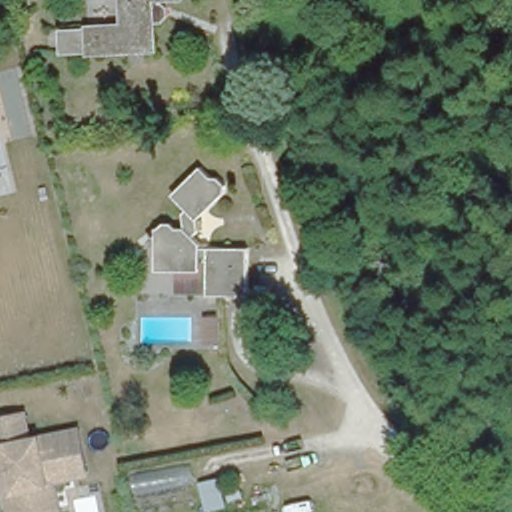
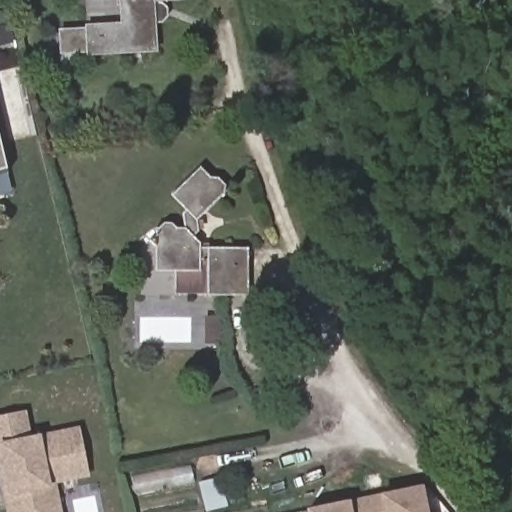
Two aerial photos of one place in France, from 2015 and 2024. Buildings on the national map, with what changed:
unchanged [(58,32),(84,32),(117,29),(116,0),(178,0),(179,2),(154,4),(155,7),(162,12),(162,21),(157,26),(150,27),(151,54),(85,59),(60,59),(58,32)]
unchanged [(10,176),(0,178),(0,137),(10,176)]
unchanged [(182,233),(182,218),(187,213),(171,198),(200,170),(210,180),(216,179),(226,189),(226,195),(197,223),(197,233),(191,239),(197,245),(197,251),(244,249),(246,298),(206,297),(205,262),(196,263),(196,275),(153,275),(153,251),(147,247),(152,241),(153,233),(156,233),(160,228),(169,228),(172,233),(182,233)]
unchanged [(1,493),(0,486),(0,418),(18,414),(24,440),(72,430),(80,467),(46,474),(40,475),(47,512),(11,512),(7,492),(1,493)]
unchanged [(47,480),(54,511),(54,512),(47,512),(40,475),(46,474),(80,467),(80,473),(47,480)]
new [(351,499),(423,483),(429,512),(307,512),(306,508),(351,499)]
unchanged [(7,492),(11,512),(5,512),(1,493),(7,492)]

